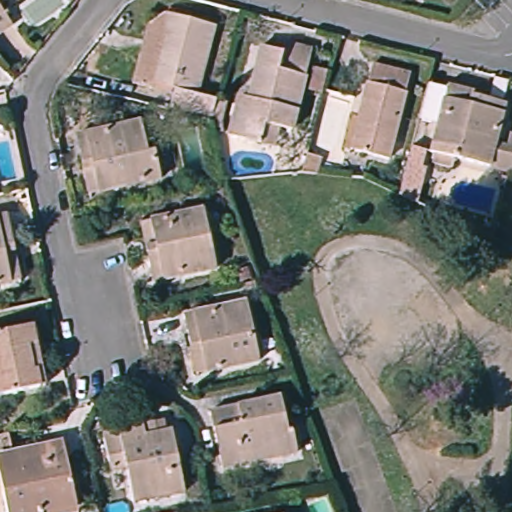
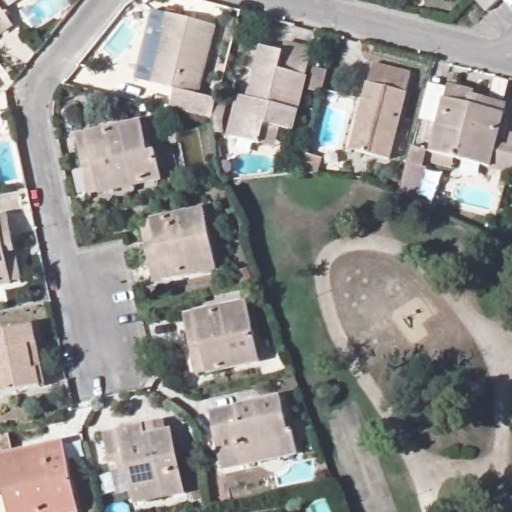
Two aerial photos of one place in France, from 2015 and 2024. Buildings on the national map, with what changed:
unchanged [(489,12),(477,0),(500,0),(489,12)]
unchanged [(8,20),(0,25),(0,8),(8,20)]
unchanged [(190,93),(145,82),(157,30),(155,29),(159,15),(207,26),(190,93)]
unchanged [(228,137),(224,135),(234,95),(239,96),(245,97),(247,90),(258,45),(280,51),(283,43),(309,49),(289,130),(275,127),(270,147),(257,145),(228,137)]
unchanged [(355,123),(370,65),(407,74),(385,160),(354,151),(348,149),(355,123)]
unchanged [(438,148),(433,147),(447,93),(451,79),(476,86),(475,91),(508,100),(502,121),(509,123),(506,134),(500,133),(498,138),(512,142),(512,160),(510,167),(457,153),(455,164),(435,159),(438,148)]
unchanged [(87,170),(79,136),(148,122),(152,137),(148,138),(150,152),(157,151),(163,180),(102,193),(92,195),(87,170)]
unchanged [(401,189),(413,142),(431,147),(418,197),(401,189)]
unchanged [(512,160),(512,168),(510,167),(512,160)]
unchanged [(219,269),(156,283),(148,247),(143,223),(153,221),(206,209),(219,269)]
unchanged [(7,278),(0,280),(0,213),(4,212),(12,246),(18,276),(7,278)]
unchanged [(188,350),(181,315),(245,302),(252,339),(258,338),(262,357),(256,358),(257,361),(204,372),(193,374),(188,350)]
unchanged [(43,388),(0,398),(0,334),(35,326),(39,345),(48,387),(43,388)]
unchanged [(225,470),(213,413),(282,398),(290,434),(296,433),(300,454),(283,458),(244,466),(225,470)]
unchanged [(187,493),(137,504),(129,469),(113,472),(105,434),(146,426),(166,421),(169,432),(174,431),(187,493)]
unchanged [(6,512),(0,484),(0,452),(16,448),(42,442),(62,437),(75,502),(76,508),(59,512),(6,512)]
unchanged [(301,505),(291,507),(289,498),(300,496),(301,505)]

